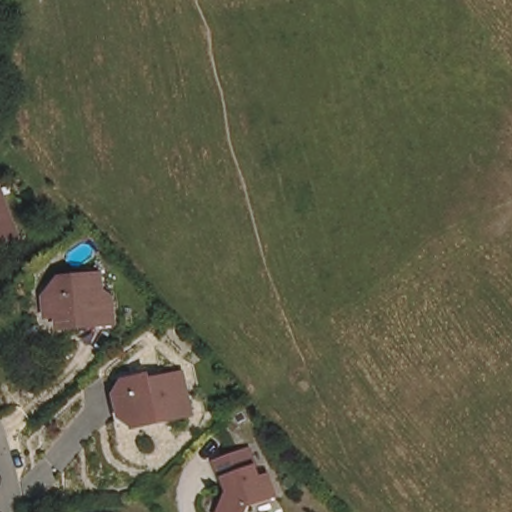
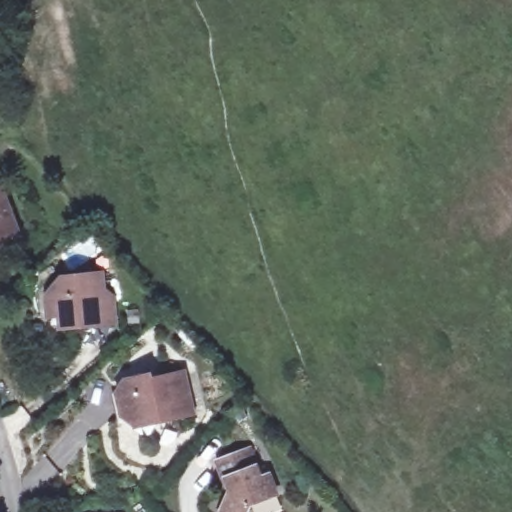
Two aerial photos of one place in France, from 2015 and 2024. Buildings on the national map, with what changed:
unchanged [(20,238),(0,245),(0,188),(20,238)]
unchanged [(101,322),(65,325),(64,313),(50,314),(47,290),(60,274),(102,269),(104,285),(115,292),(115,303),(117,320),(101,322)]
unchanged [(152,379),(181,372),(192,415),(164,422),(162,416),(129,424),(120,390),(129,379),(152,374),(152,379)]
unchanged [(215,463),(249,452),(259,482),(269,479),(275,497),(250,505),(247,512),(220,512),(228,498),(222,482),(215,463)]

